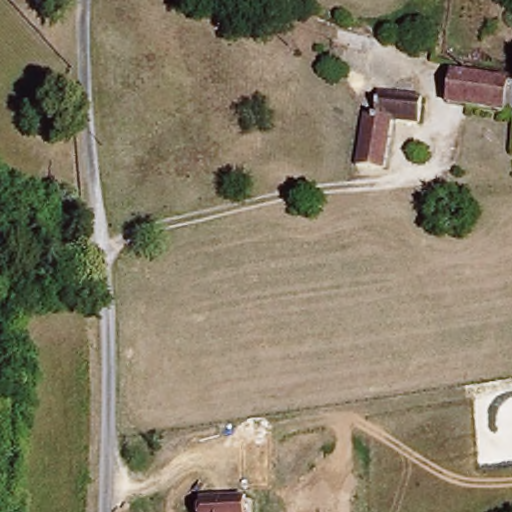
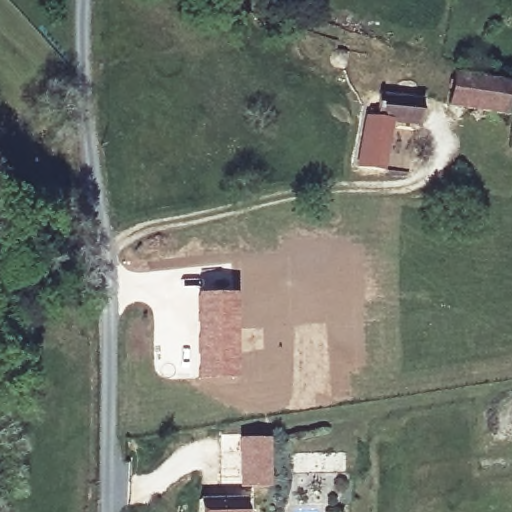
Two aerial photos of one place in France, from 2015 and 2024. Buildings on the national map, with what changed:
unchanged [(452,100),(457,70),(512,80),(512,107),(511,111),(452,100)]
unchanged [(370,91),(382,94),(384,76),(398,77),(399,94),(422,98),(420,121),(395,117),(387,170),(362,166),(370,91)]
new [(235,292),(237,378),(197,378),(195,294),(235,292)]
new [(219,433),(239,433),(239,436),(239,484),(218,483),(219,433)]
new [(239,436),(270,436),(270,487),(239,484),(239,436)]
unchanged [(246,497),(246,512),(200,512),(200,497),(246,497)]

